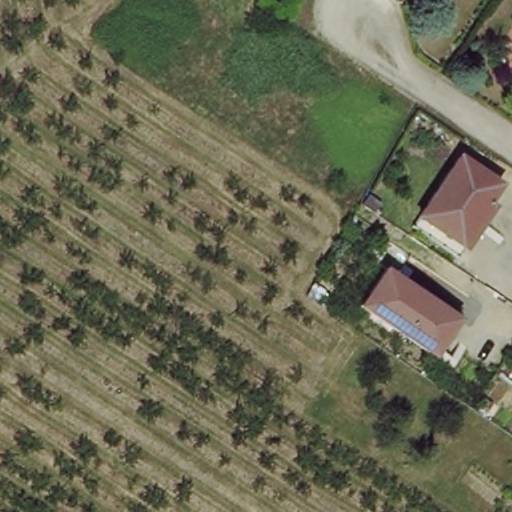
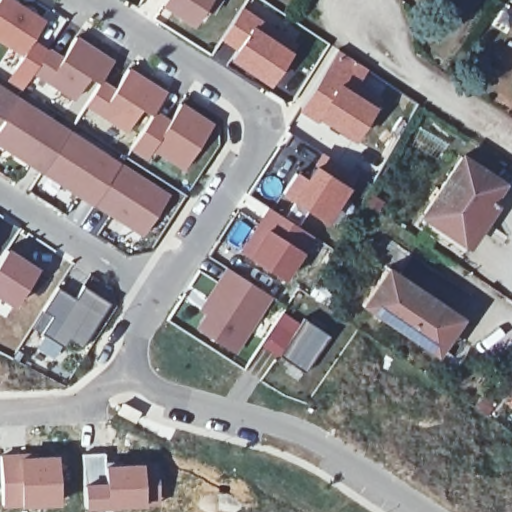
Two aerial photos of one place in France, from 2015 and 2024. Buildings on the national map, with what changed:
new [(75,101),(32,76),(31,79),(15,69),(22,56),(0,43),(0,0),(18,0),(47,19),(35,39),(65,56),(77,35),(115,59),(99,85),(89,79),(75,101)]
new [(163,0),(211,0),(192,26),(160,6),(163,0)]
new [(267,86),(227,59),(233,50),(218,40),(241,6),(262,20),(257,26),(292,50),(267,86)]
new [(337,49),(369,71),(356,91),(375,104),(352,141),(297,111),(337,49)]
new [(94,207),(93,209),(0,149),(0,84),(171,194),(140,238),(94,207)]
new [(164,118),(177,100),(207,119),(178,167),(133,138),(150,109),(164,118)]
new [(296,170),(305,176),(321,152),(334,161),(332,165),(330,164),(327,169),(350,185),(325,224),(280,195),(296,170)]
unchanged [(490,197),(497,201),(485,217),(471,207),(455,232),(423,211),(463,152),(503,179),(490,197)]
new [(268,207),(315,238),(303,253),(285,281),(240,252),(268,207)]
unchanged [(462,252),(417,221),(423,211),(455,232),(471,207),(485,217),(462,252)]
new [(38,267),(12,307),(0,299),(0,255),(6,247),(38,267)]
new [(195,328),(203,314),(198,310),(225,267),(273,299),(237,355),(195,328)]
unchanged [(437,356),(404,334),(362,305),(388,268),(455,313),(463,318),(437,356)]
new [(72,298),(82,284),(105,300),(78,341),(67,334),(61,343),(38,328),(48,314),(40,308),(55,286),(72,298)]
new [(303,319),(328,335),(305,373),(280,356),(303,319)]
new [(158,503),(82,507),(80,482),(80,453),(104,452),(105,463),(157,461),(158,503)]
new [(58,505),(1,510),(0,491),(0,453),(57,453),(58,505)]

